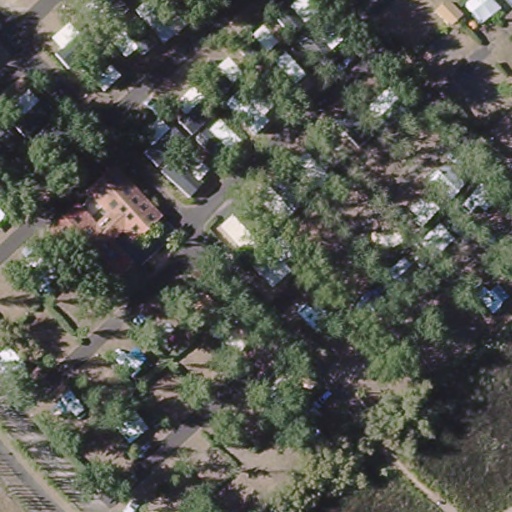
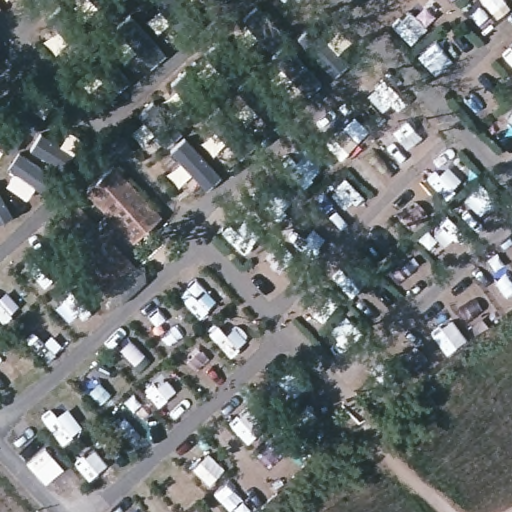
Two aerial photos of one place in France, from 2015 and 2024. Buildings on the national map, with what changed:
unchanged [(80,206),(92,197),(80,184),(110,159),(160,210),(130,236),(120,224),(105,234),(80,206)]
unchanged [(105,234),(132,263),(105,286),(52,226),(80,206),(105,234)]

